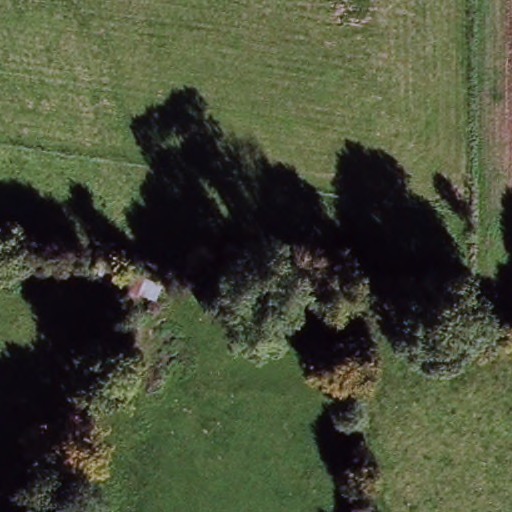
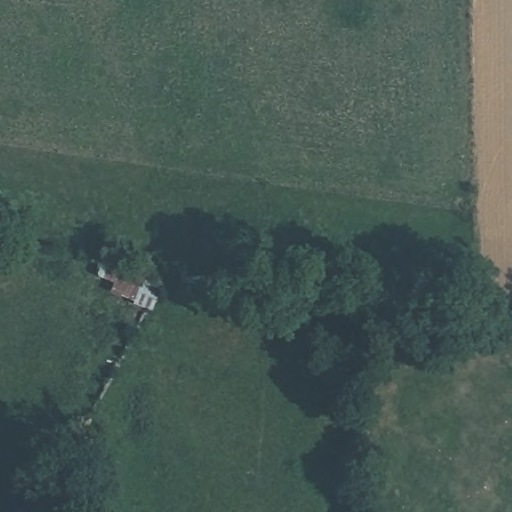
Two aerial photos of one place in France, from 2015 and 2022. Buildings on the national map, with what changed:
[]

